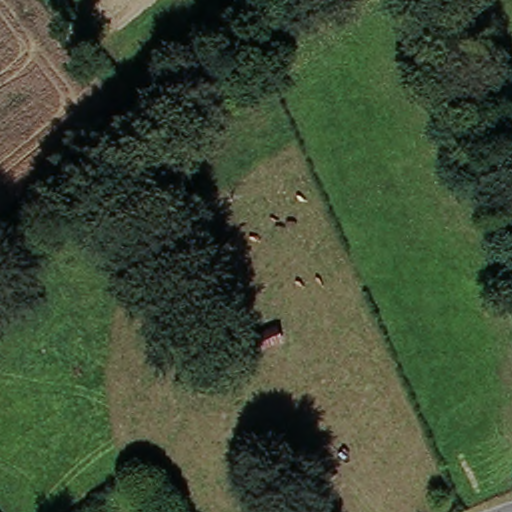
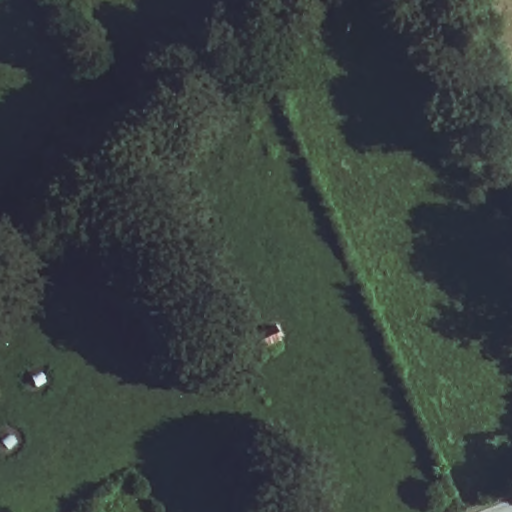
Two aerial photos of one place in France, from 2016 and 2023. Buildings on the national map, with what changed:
unchanged [(252,335),(280,323),(290,344),(262,356),(252,335)]

